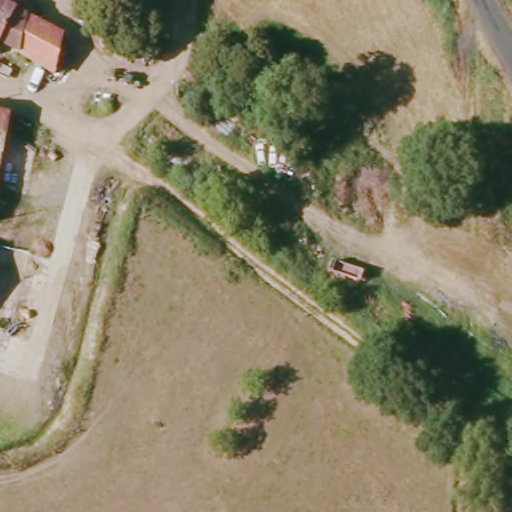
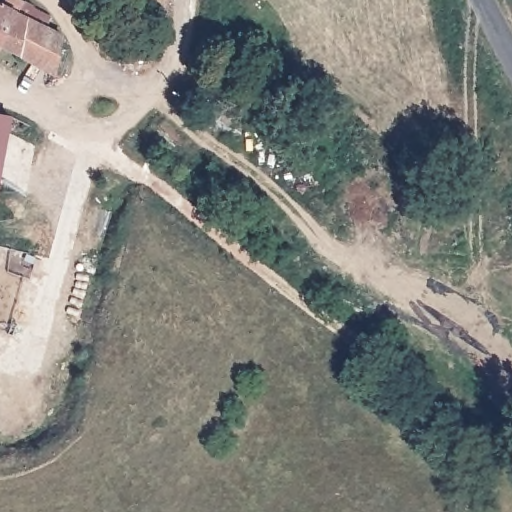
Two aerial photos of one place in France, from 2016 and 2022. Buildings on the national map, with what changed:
unchanged [(137,5),(138,0),(168,0),(164,12),(137,5)]
unchanged [(6,1),(29,13),(24,24),(58,42),(49,81),(0,54),(0,9),(1,10),(6,1)]
unchanged [(126,29),(119,42),(79,17),(87,3),(126,29)]
unchanged [(8,115),(0,159),(0,113),(8,115)]

